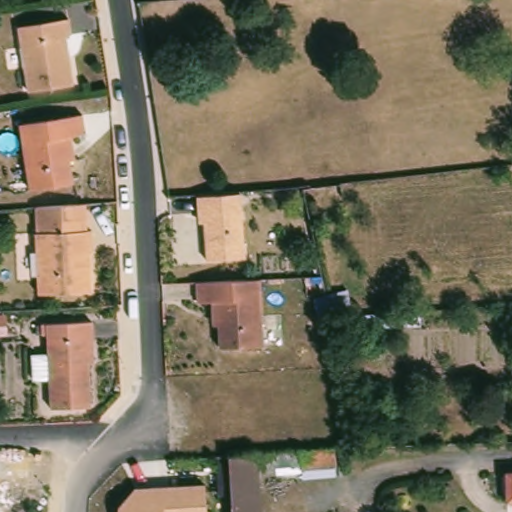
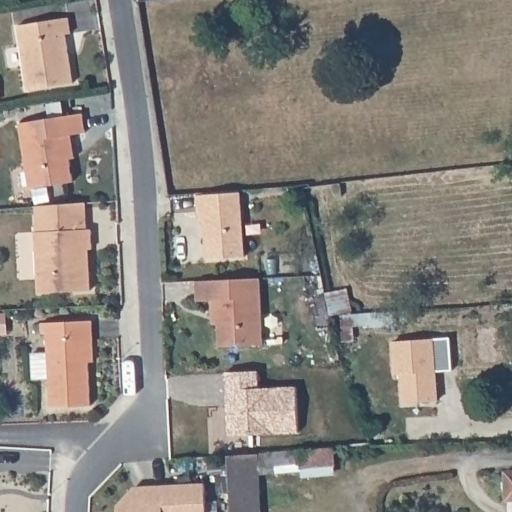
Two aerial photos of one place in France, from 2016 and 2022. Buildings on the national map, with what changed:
unchanged [(19,29),(69,21),(72,36),(66,37),(74,86),(29,92),(19,29)]
unchanged [(29,187),(19,122),(82,112),(85,131),(70,133),(74,157),(69,157),(73,180),(29,187)]
unchanged [(239,195),(244,260),(207,262),(203,215),(198,215),(197,198),(239,195)]
unchanged [(98,287),(44,290),(41,229),(43,229),(40,204),(88,200),(91,200),(93,226),(98,226),(99,246),(95,246),(96,267),(98,287)]
unchanged [(196,283),(260,281),(263,347),(219,349),(218,327),(213,327),(212,303),(197,303),(196,283)]
unchanged [(397,327),(371,328),(369,315),(396,313),(397,327)]
unchanged [(93,342),(94,365),(89,365),(90,408),(50,410),(46,336),(41,336),(41,326),(46,326),(91,323),(93,342)]
new [(450,338),(452,370),(437,372),(439,401),(403,404),(400,373),(394,373),(392,342),(435,339),(450,338)]
new [(227,395),(226,373),(258,372),(259,389),(297,387),(299,433),(229,436),(228,407),(227,395)]
unchanged [(333,449),(335,469),(259,476),(259,456),(333,449)]
unchanged [(259,456),(259,476),(261,512),(231,512),(229,458),(259,456)]
unchanged [(508,501),(507,473),(512,473),(512,500),(508,501)]
unchanged [(119,506),(136,487),(204,482),(205,512),(119,512),(119,506)]

